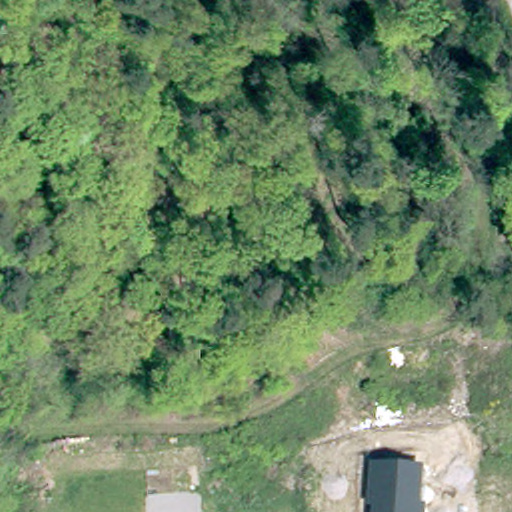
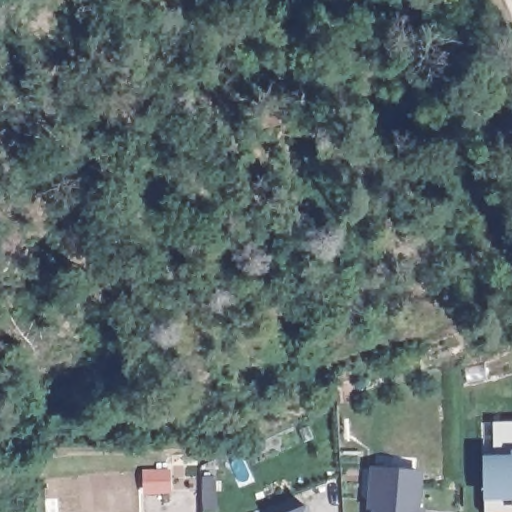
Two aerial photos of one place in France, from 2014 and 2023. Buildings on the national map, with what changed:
new [(512,512),(486,512),(485,499),(483,455),(495,455),(494,421),(512,420),(512,512)]
unchanged [(374,509),(365,509),(368,466),(425,470),(422,508),(427,508),(427,512),(374,512),(374,509)]
new [(170,472),(170,491),(150,492),(145,492),(143,473),(150,472),(170,472)]
new [(308,503),(312,512),(289,512),(308,503)]

